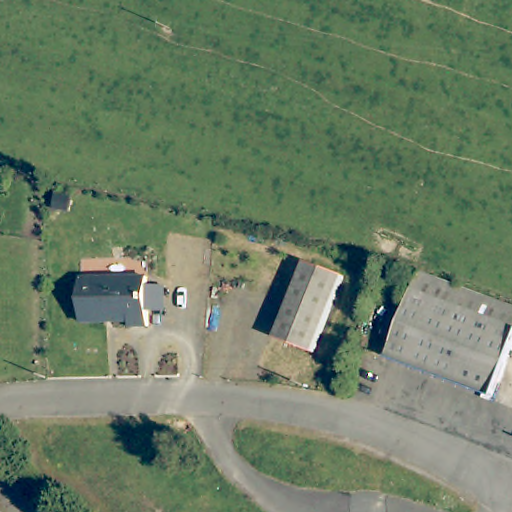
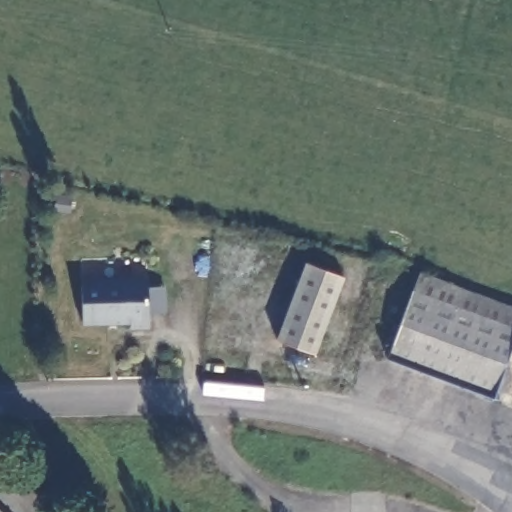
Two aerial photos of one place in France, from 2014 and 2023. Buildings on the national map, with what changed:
unchanged [(356,269),(325,345),(288,331),(318,254),(356,269)]
unchanged [(423,270),(512,302),(512,322),(417,286),(423,270)]
unchanged [(131,328),(131,322),(83,324),(82,280),(148,278),(148,288),(166,287),(166,312),(149,313),(149,327),(131,328)]
unchanged [(512,322),(512,357),(498,393),(392,354),(417,286),(512,322)]
unchanged [(0,512),(0,504),(8,512),(0,512)]

